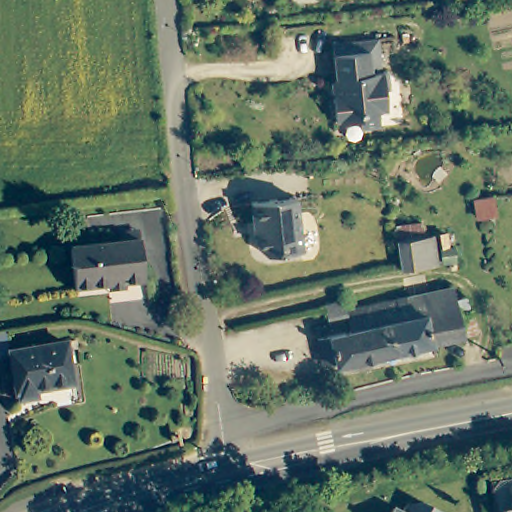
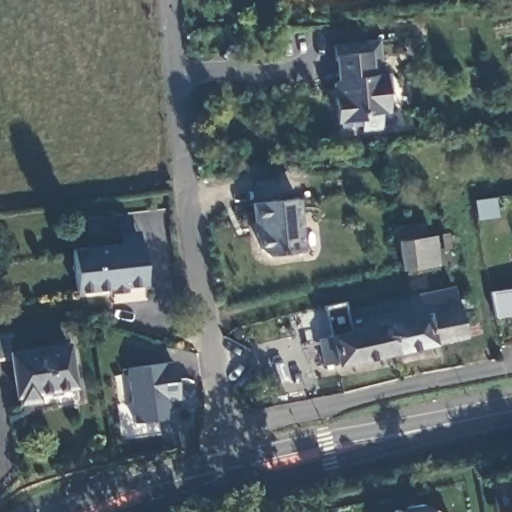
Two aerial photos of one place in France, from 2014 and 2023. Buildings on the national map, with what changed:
unchanged [(385,82),(392,82),(394,101),(390,102),(392,123),(383,124),(384,137),(365,140),(363,130),(339,133),(336,106),(341,106),(338,84),(335,55),(381,50),(385,82)]
unchanged [(306,252),(272,256),(262,248),(259,223),(256,224),(254,204),(298,197),(306,252)]
unchanged [(497,216),(479,219),(476,200),(494,197),(497,216)]
unchanged [(433,263),(398,268),(394,240),(392,226),(419,222),(420,237),(430,235),(433,263)]
unchanged [(110,293),(109,287),(78,291),(74,249),(121,245),(120,235),(142,233),(142,242),(147,284),(127,286),(127,292),(110,293)]
unchanged [(446,247),(438,248),(436,235),(444,234),(446,247)]
unchanged [(465,335),(395,351),(388,321),(401,318),(397,300),(406,297),(407,297),(454,286),(460,311),(473,308),(479,331),(465,335)]
new [(489,292),(512,288),(512,314),(494,317),(489,292)]
unchanged [(336,361),(325,364),(318,338),(352,330),(348,311),(397,300),(401,318),(388,321),(395,351),(337,364),(336,361)]
unchanged [(348,311),(330,316),(327,304),(345,300),(348,311)]
unchanged [(77,386),(38,393),(39,400),(21,402),(21,396),(18,396),(11,353),(69,343),(77,386)]
new [(124,367),(171,360),(176,399),(169,400),(171,417),(134,422),(124,367)]
unchanged [(387,512),(390,507),(398,511),(401,504),(417,501),(441,512),(387,512)]
unchanged [(509,512),(508,507),(512,506),(512,512),(509,512)]

